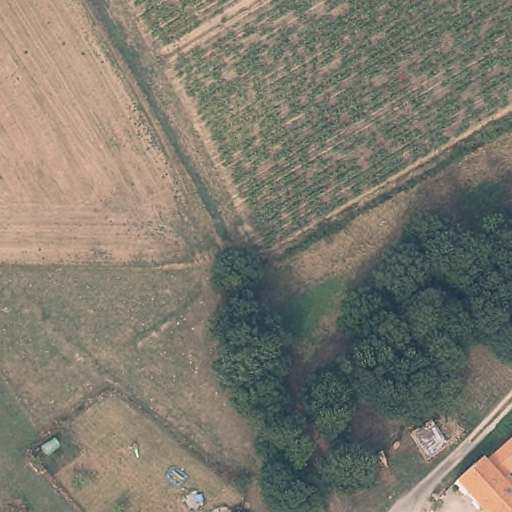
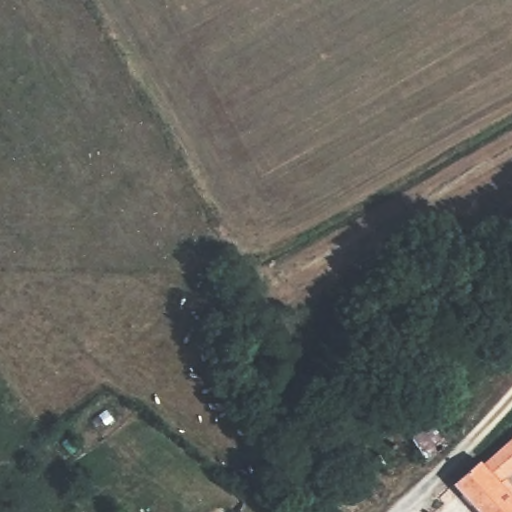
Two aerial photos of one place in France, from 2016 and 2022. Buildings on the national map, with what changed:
unchanged [(431,420),(448,444),(431,459),(412,432),(431,420)]
unchanged [(512,471),(500,481),(483,461),(512,438),(512,471)]
unchanged [(455,485),(483,461),(500,481),(512,494),(512,512),(481,512),(455,485)]

